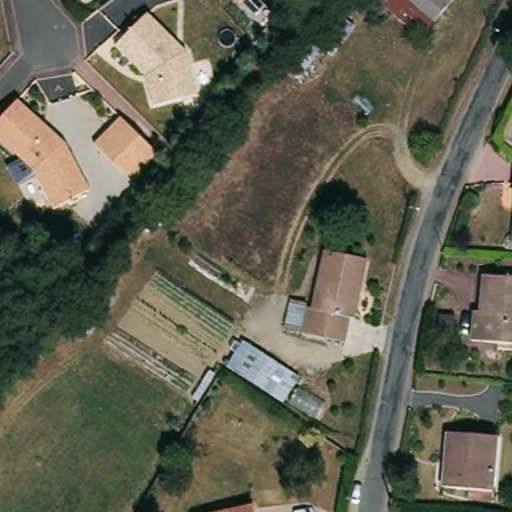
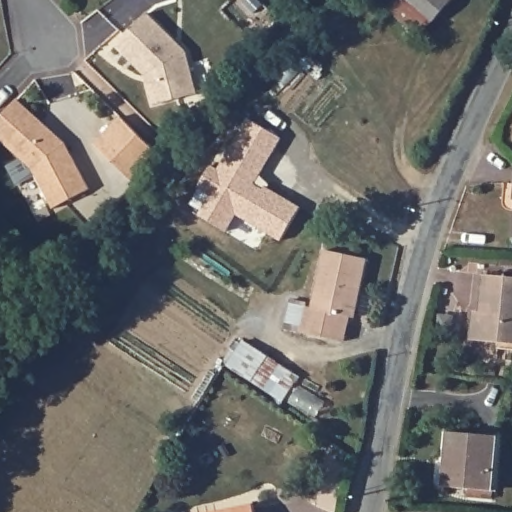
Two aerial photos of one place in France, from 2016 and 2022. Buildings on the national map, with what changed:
unchanged [(426,31),(419,40),(373,0),(374,0),(403,0),(432,24),(426,31)]
unchanged [(446,8),(432,24),(403,0),(438,0),(439,1),(446,8)]
unchanged [(439,1),(438,0),(453,0),(446,8),(439,1)]
unchanged [(249,4),(258,14),(252,20),(242,10),(249,4)]
unchanged [(143,75),(115,48),(146,14),(185,54),(196,95),(153,108),(147,84),(145,75),(143,75)]
demolished [(327,19),(348,36),(317,75),(292,60),(327,19)]
unchanged [(55,209),(34,169),(0,139),(0,119),(5,113),(17,99),(66,144),(72,155),(90,190),(55,209)]
new [(280,138),(255,182),(301,207),(282,239),(237,213),(226,231),(199,214),(211,195),(199,188),(211,165),(219,170),(247,119),(280,138)]
unchanged [(118,120),(154,156),(131,187),(91,147),(118,120)]
unchanged [(512,177),(512,206),(508,205),(512,177)]
unchanged [(512,232),(512,237),(511,237),(512,232)]
unchanged [(306,307),(310,305),(324,251),(366,259),(353,317),(349,315),(343,342),(301,333),(306,307)]
unchanged [(512,341),(468,335),(473,312),(478,311),(483,274),(512,277),(512,341)]
unchanged [(298,378),(282,402),(227,364),(243,340),(298,378)]
unchanged [(493,442),(488,493),(442,489),(446,437),(493,442)]
unchanged [(245,507),(246,512),(218,512),(245,507)]

